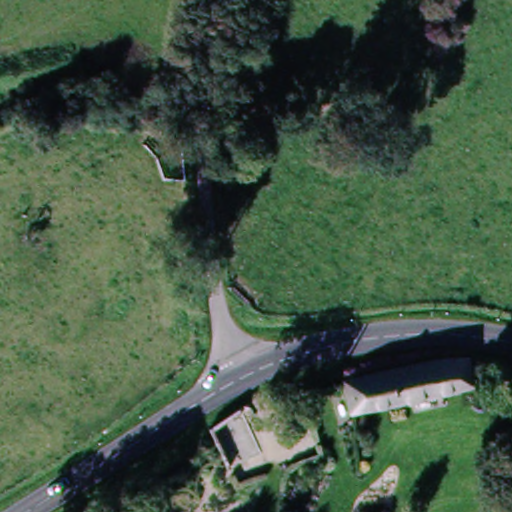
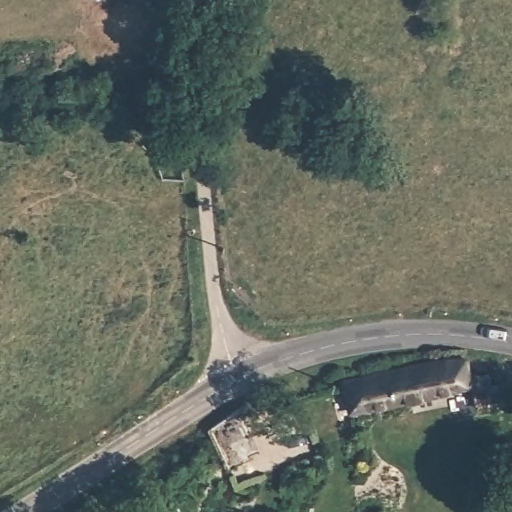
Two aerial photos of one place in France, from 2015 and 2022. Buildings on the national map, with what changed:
unchanged [(472,368),(471,385),(348,412),(343,378),(447,360),(472,368)]

